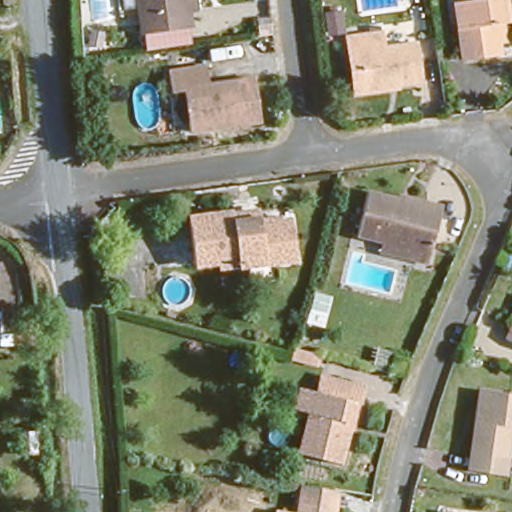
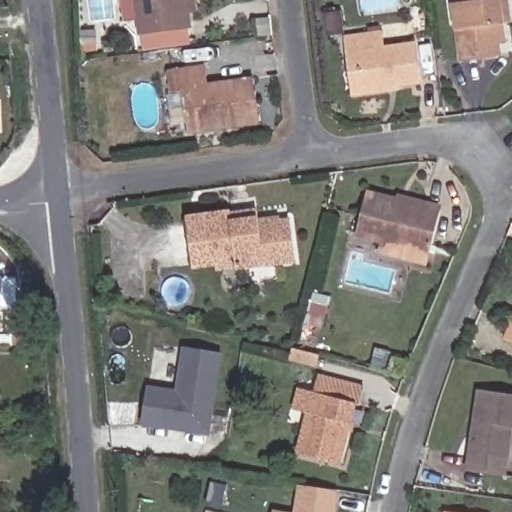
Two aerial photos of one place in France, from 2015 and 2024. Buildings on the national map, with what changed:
unchanged [(194,7),(183,7),(185,24),(142,28),(139,0),(193,0),(194,7)]
unchanged [(498,24),(491,25),(494,52),(455,57),(447,2),(457,0),(495,0),(498,24)]
unchanged [(378,32),(379,42),(407,39),(412,83),(355,90),(351,54),(346,55),(345,36),(378,32)]
unchanged [(103,39),(105,58),(85,61),(84,40),(103,39)]
unchanged [(206,79),(250,75),(255,119),(184,127),(180,85),(166,86),(165,62),(204,59),(206,79)]
unchanged [(373,250),(377,238),(354,231),(367,187),(438,211),(423,252),(418,263),(373,250)]
unchanged [(193,261),(188,217),(187,210),(231,204),(232,212),(257,209),(258,217),(259,223),(288,220),(293,255),(241,262),(222,266),(221,257),(193,261)]
unchanged [(510,316),(512,316),(512,337),(502,332),(510,316)]
new [(182,347),(223,353),(210,437),(141,426),(147,385),(175,389),(182,347)]
unchanged [(306,349),(323,353),(320,366),(295,360),(296,347),(306,349)]
unchanged [(392,362),(405,366),(401,380),(388,377),(392,362)]
unchanged [(366,406),(359,404),(342,460),(301,447),(311,413),(298,410),(304,387),(318,391),(324,375),(337,378),(371,389),(366,406)]
unchanged [(512,421),(499,420),(495,467),(461,466),(468,382),(512,386),(512,421)]
unchanged [(325,502),(333,503),(332,512),(293,512),(297,482),(327,487),(325,502)]
unchanged [(289,512),(275,512),(276,510),(289,512)]

